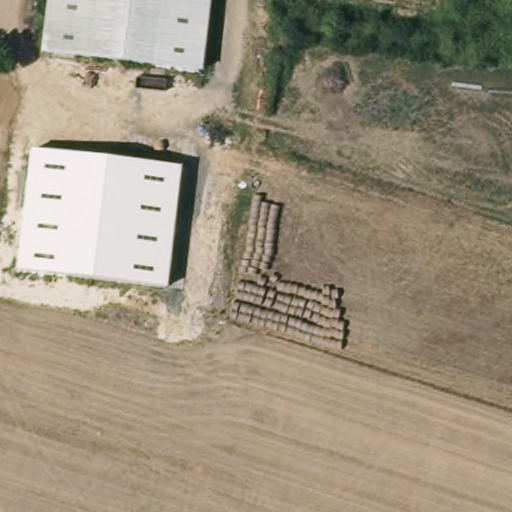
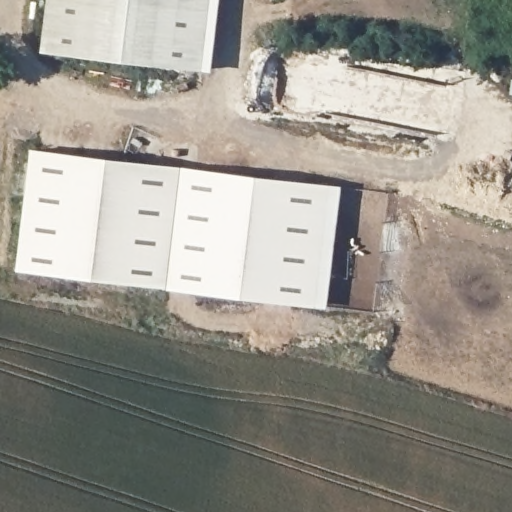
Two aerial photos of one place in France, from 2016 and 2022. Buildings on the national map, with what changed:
unchanged [(205,69),(46,48),(53,0),(214,0),(205,69)]
unchanged [(29,150),(180,168),(165,288),(15,269),(29,150)]
new [(180,168),(329,185),(315,307),(165,288),(180,168)]

